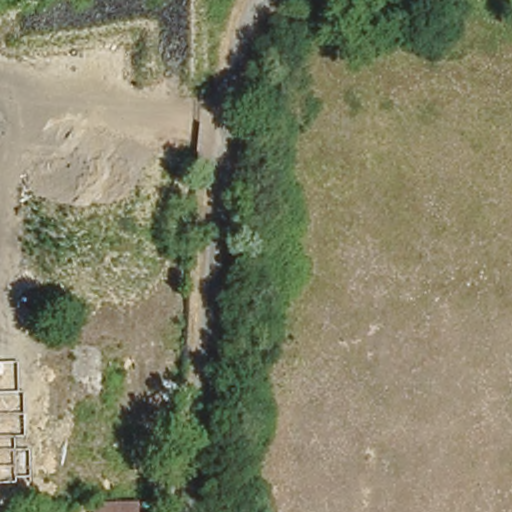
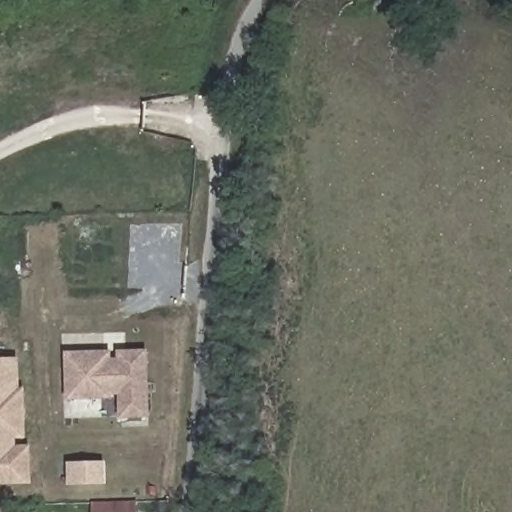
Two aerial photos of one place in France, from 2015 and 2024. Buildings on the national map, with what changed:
new [(67,400),(65,353),(110,351),(110,358),(118,358),(118,351),(149,350),(152,418),(120,419),(119,396),(112,395),(112,399),(67,400)]
new [(32,485),(0,485),(0,359),(20,359),(20,388),(25,388),(27,439),(16,440),(16,446),(30,446),(32,485)]
unchanged [(128,512),(99,512),(99,503),(128,503),(128,512)]

